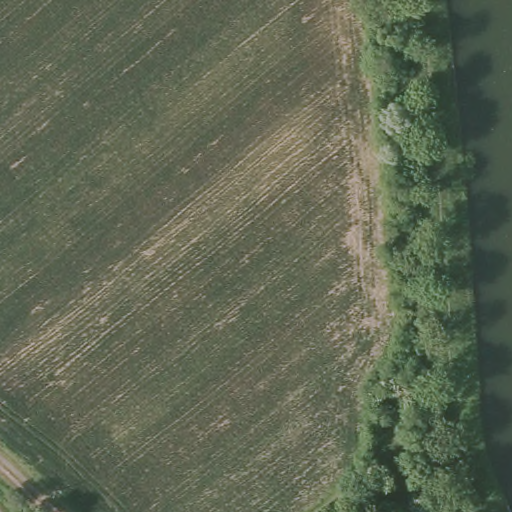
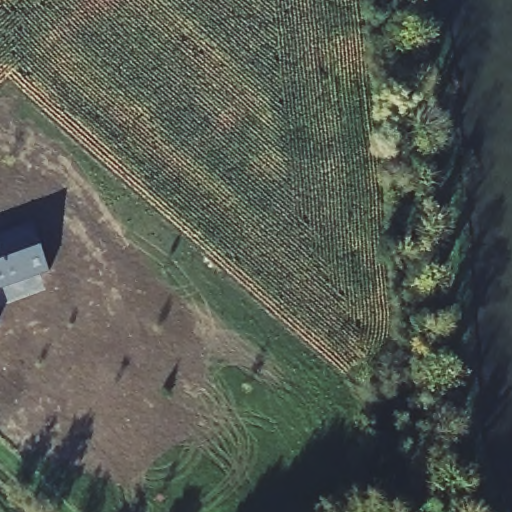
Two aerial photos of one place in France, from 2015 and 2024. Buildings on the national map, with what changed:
new [(0,292),(0,238),(32,226),(49,273),(0,292)]

